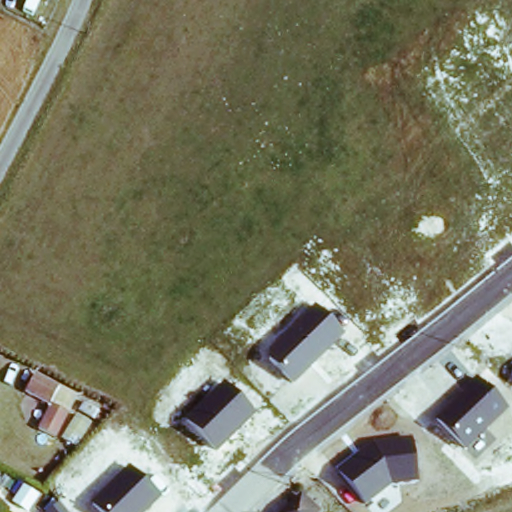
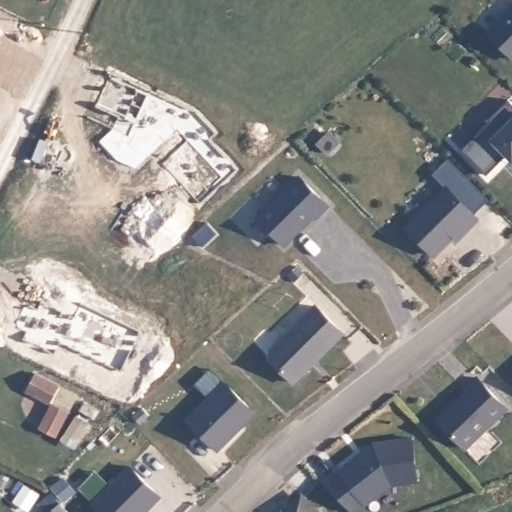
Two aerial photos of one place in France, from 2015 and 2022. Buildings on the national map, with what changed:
new [(512,18),(512,56),(493,34),(512,18)]
new [(510,158),(489,178),(465,151),(494,124),(492,122),(512,105),(512,160),(510,158)]
new [(332,135),(341,145),(330,155),(321,145),(332,135)]
new [(318,219),(316,217),(286,245),(260,217),(303,178),(330,208),(318,219)]
new [(452,241),(433,260),(407,231),(448,192),(478,224),(464,237),(455,245),(452,241)]
unchanged [(265,355),(315,306),(345,336),(294,384),(265,355)]
unchanged [(433,419),(476,378),(507,411),(465,450),(433,419)]
unchanged [(36,383),(59,395),(52,409),(29,398),(36,383)]
unchanged [(183,420),(224,383),(255,415),(217,453),(183,420)]
unchanged [(61,388),(78,397),(58,442),(36,432),(47,407),(52,409),(56,401),(59,395),(61,388)]
unchanged [(338,472),(370,446),(411,438),(417,483),(391,485),(364,507),(338,472)]
unchanged [(130,467),(161,499),(148,512),(98,512),(90,505),(130,467)]
unchanged [(281,512),(303,494),(316,512),(281,512)]
unchanged [(65,512),(45,512),(57,502),(65,512)]

